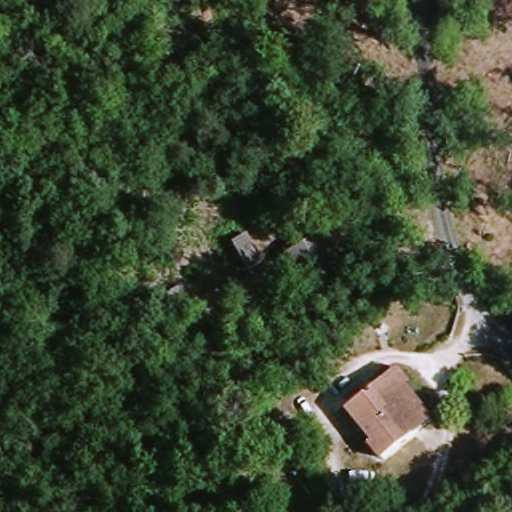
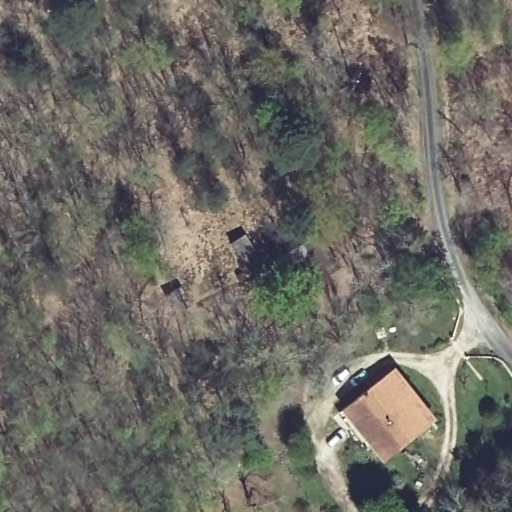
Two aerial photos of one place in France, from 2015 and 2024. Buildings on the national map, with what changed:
unchanged [(259,260),(246,268),(229,245),(243,236),(259,260)]
unchanged [(306,289),(286,257),(319,236),(340,267),(306,289)]
unchanged [(424,428),(407,442),(366,393),(384,380),(424,428)]
unchanged [(376,467),(334,418),(366,393),(407,442),(376,467)]

